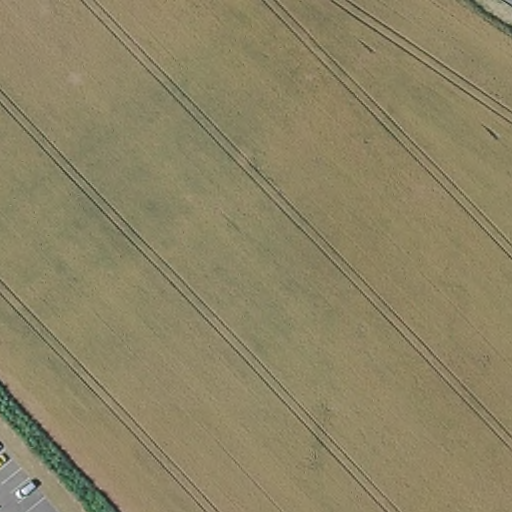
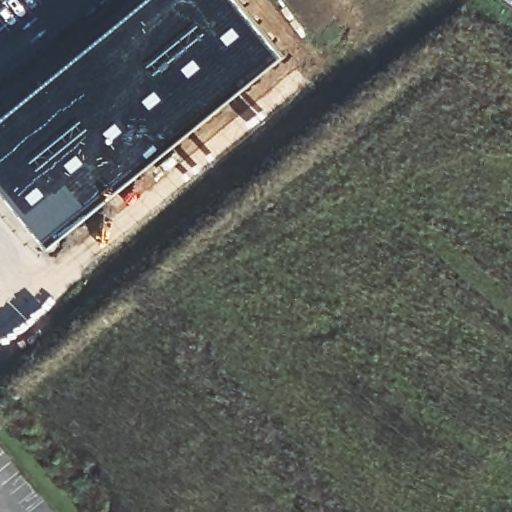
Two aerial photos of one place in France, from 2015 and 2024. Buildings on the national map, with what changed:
new [(150,0),(239,0),(284,55),(52,247),(0,184),(0,122),(150,0)]

